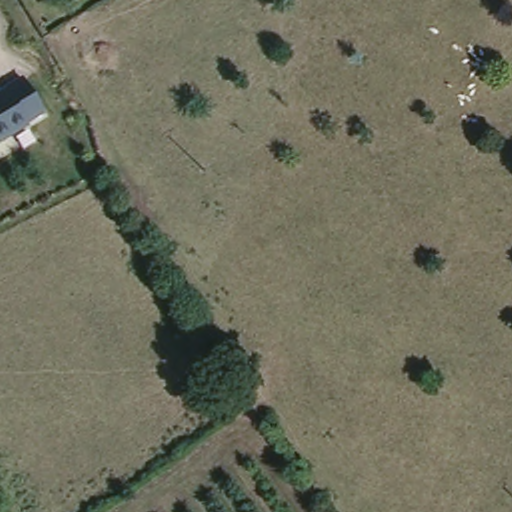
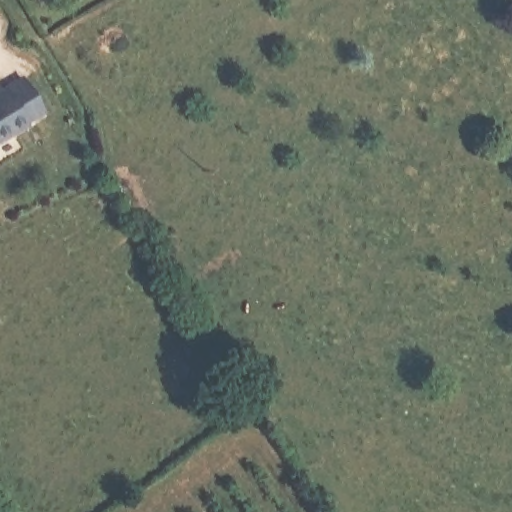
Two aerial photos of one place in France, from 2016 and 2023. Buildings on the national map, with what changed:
unchanged [(7,133),(0,137),(0,88),(21,74),(45,106),(7,133)]

